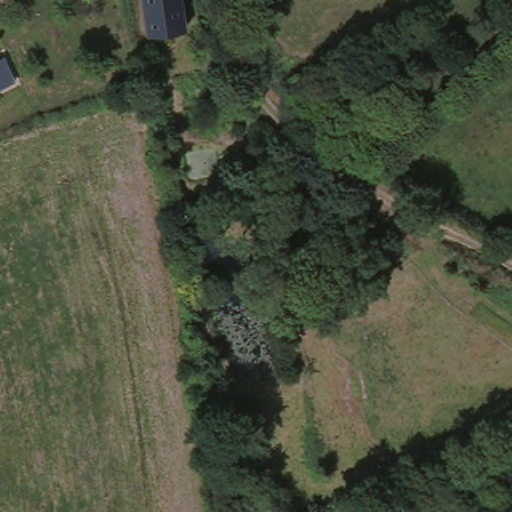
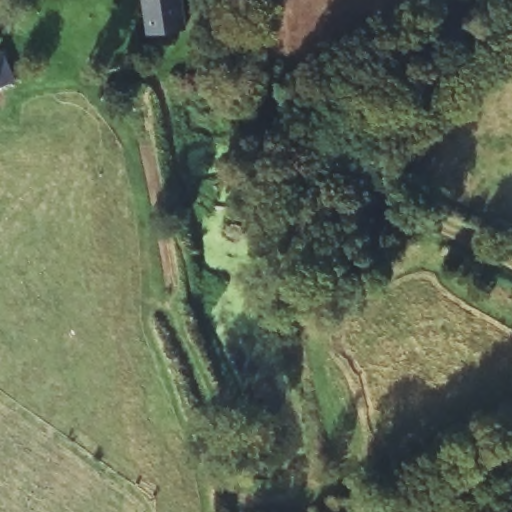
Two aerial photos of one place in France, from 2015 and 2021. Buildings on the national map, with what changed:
unchanged [(183,26),(143,30),(139,0),(178,0),(183,26)]
unchanged [(11,87),(0,93),(0,69),(11,87)]

